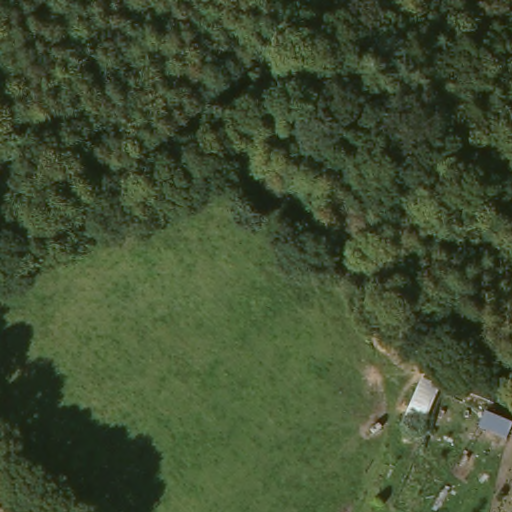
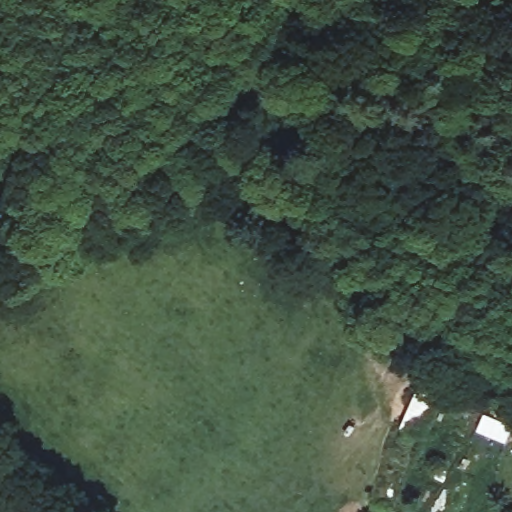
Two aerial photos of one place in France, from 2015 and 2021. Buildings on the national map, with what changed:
unchanged [(444,382),(430,418),(409,408),(425,373),(444,382)]
unchanged [(486,407),(512,416),(512,429),(510,434),(480,422),(486,407)]

